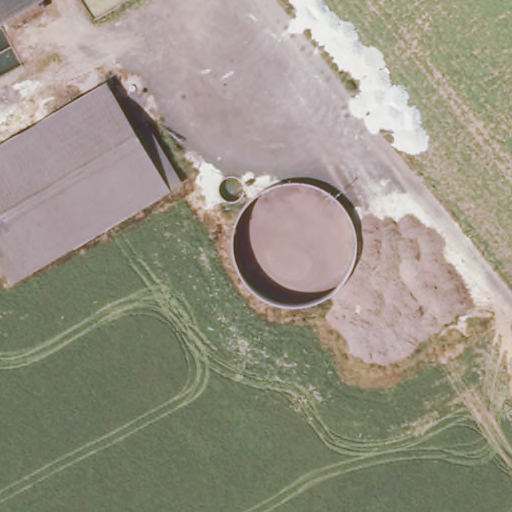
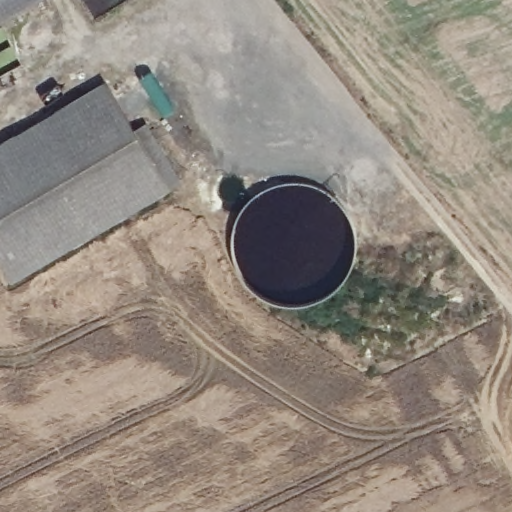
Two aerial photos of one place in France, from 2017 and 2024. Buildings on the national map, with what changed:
unchanged [(0,22),(0,0),(36,0),(0,22)]
unchanged [(132,127),(146,119),(179,178),(11,280),(0,261),(0,136),(103,76),(132,127)]

